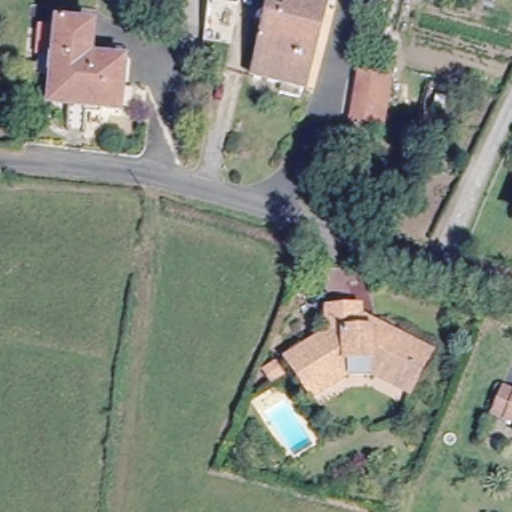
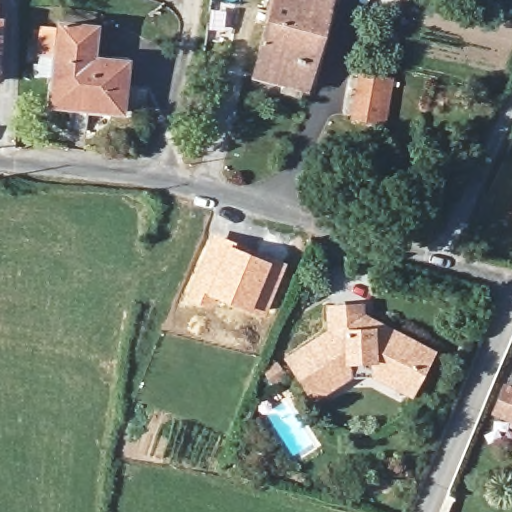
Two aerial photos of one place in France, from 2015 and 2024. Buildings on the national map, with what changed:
unchanged [(302,84),(300,93),(280,87),(282,79),(251,70),(268,0),(326,0),(303,85),(302,84)]
unchanged [(42,55),(46,29),(64,30),(65,25),(100,29),(96,60),(130,64),(125,111),(56,104),(61,56),(42,55)]
unchanged [(37,64),(47,65),(45,79),(35,77),(37,64)]
unchanged [(383,122),(352,117),(360,74),(391,80),(383,122)]
new [(213,234),(256,254),(287,263),(265,317),(205,294),(199,305),(184,300),(213,234)]
unchanged [(331,329),(330,305),(362,303),(362,312),(376,320),(421,342),(433,348),(426,365),(412,390),(376,371),(375,357),(350,360),(351,373),(315,396),(293,361),(290,356),(302,348),(331,329)]
unchanged [(508,420),(495,415),(505,388),(512,391),(512,421),(508,420)]

